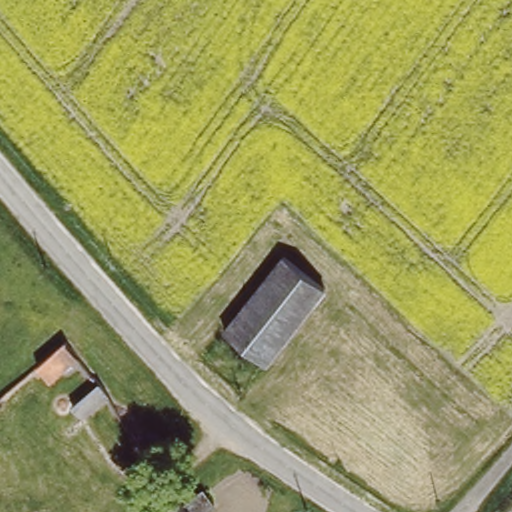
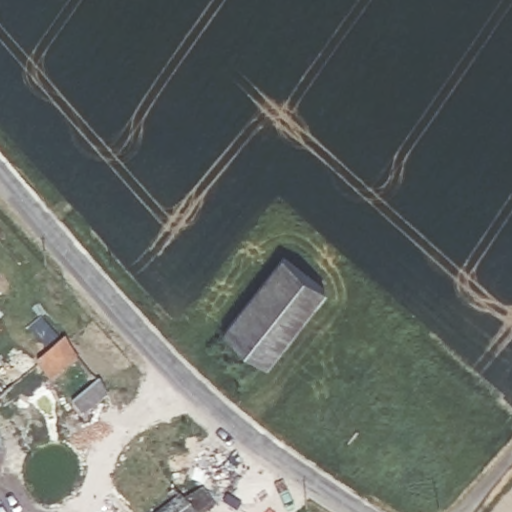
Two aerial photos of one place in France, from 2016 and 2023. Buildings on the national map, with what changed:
unchanged [(287,255),(325,286),(265,362),(227,332),(287,255)]
unchanged [(67,342),(82,358),(55,384),(42,368),(67,342)]
unchanged [(104,381),(112,391),(85,415),(75,405),(104,381)]
unchanged [(202,494),(214,506),(207,512),(167,512),(180,502),(185,508),(202,494)]

